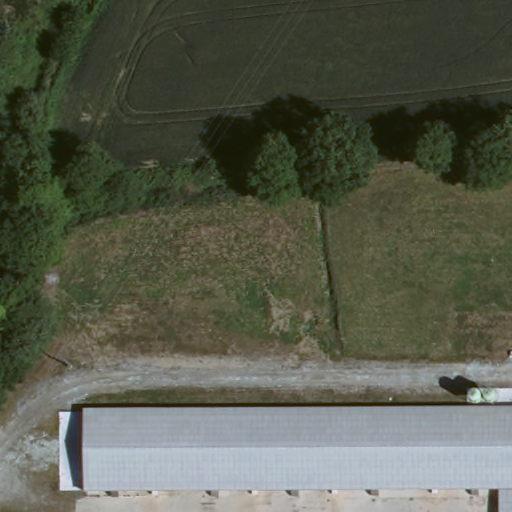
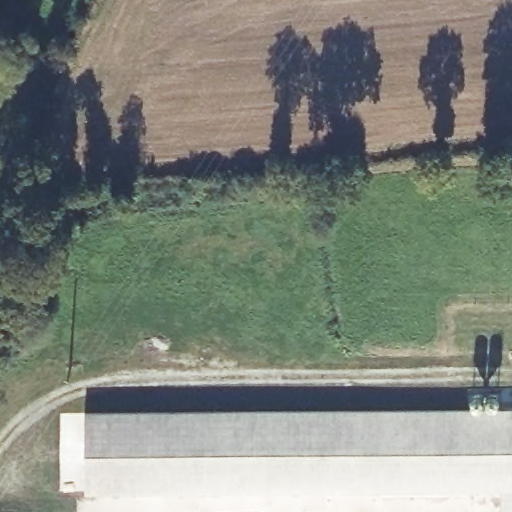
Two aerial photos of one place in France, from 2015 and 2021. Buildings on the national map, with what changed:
unchanged [(512,486),(74,487),(74,405),(512,402),(512,486)]

